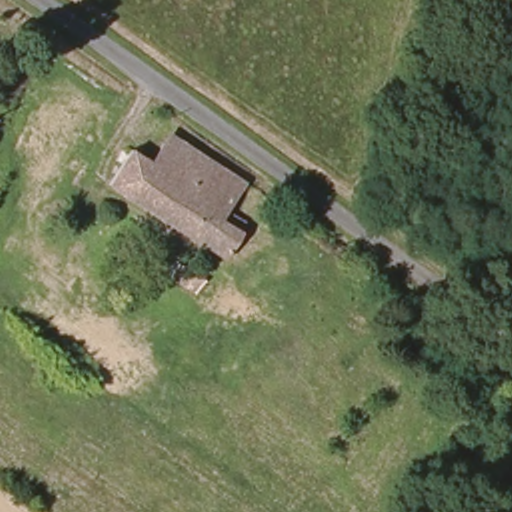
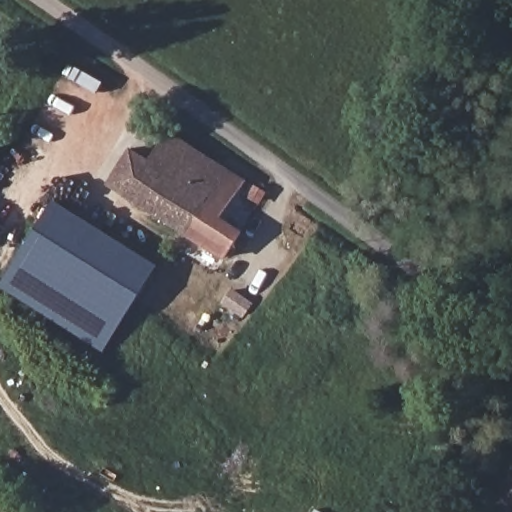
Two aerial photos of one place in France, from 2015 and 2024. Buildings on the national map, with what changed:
unchanged [(244,236),(227,260),(105,181),(131,144),(154,160),(174,134),(250,184),(233,210),(251,224),(244,236)]
new [(1,286),(55,200),(157,264),(102,351),(1,286)]
unchanged [(190,302),(173,291),(161,283),(178,262),(204,281),(192,298),(190,302)]

